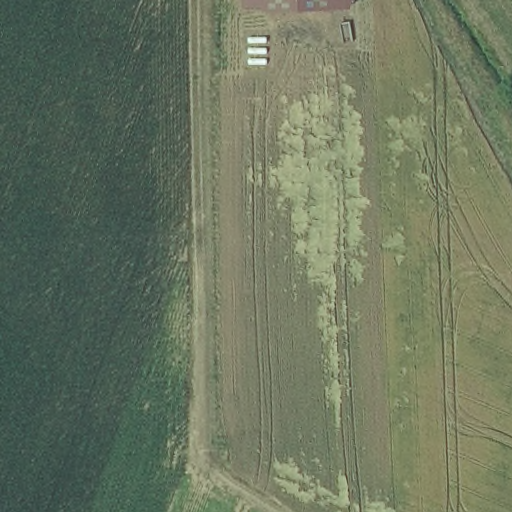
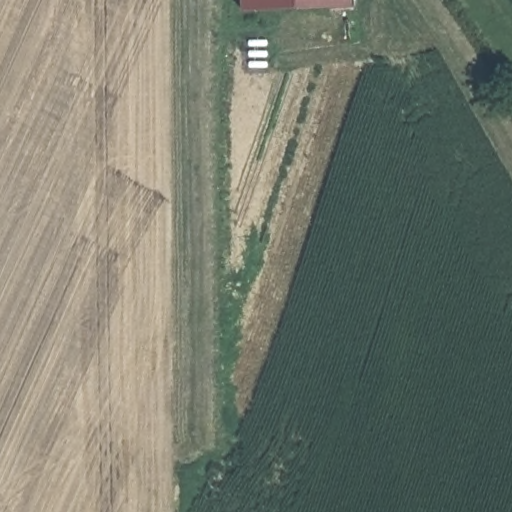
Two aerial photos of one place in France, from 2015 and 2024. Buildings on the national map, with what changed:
unchanged [(248,12),(247,0),(357,0),(357,7),(248,12)]

